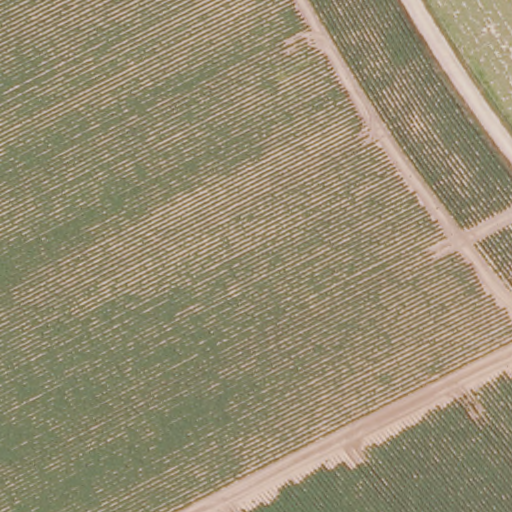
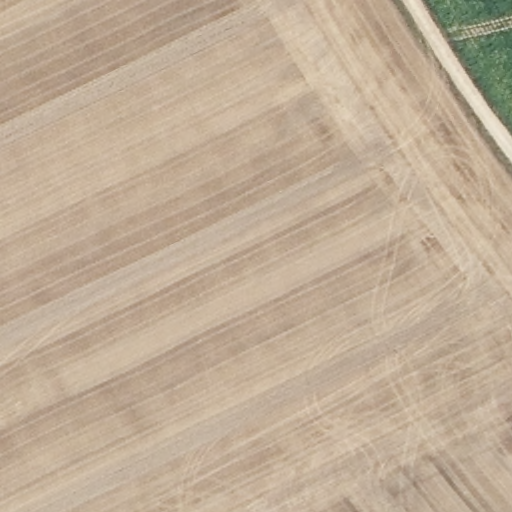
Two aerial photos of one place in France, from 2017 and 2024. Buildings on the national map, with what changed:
[]

